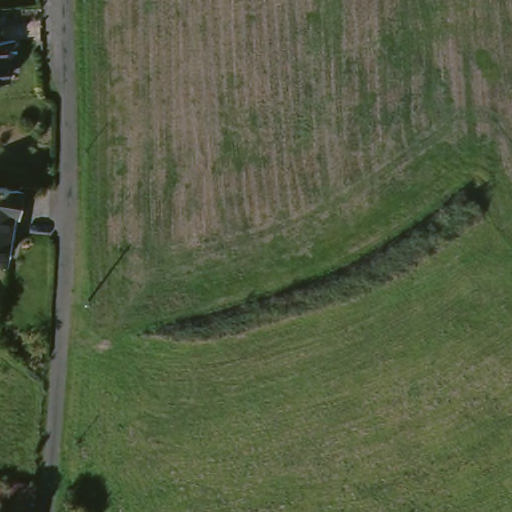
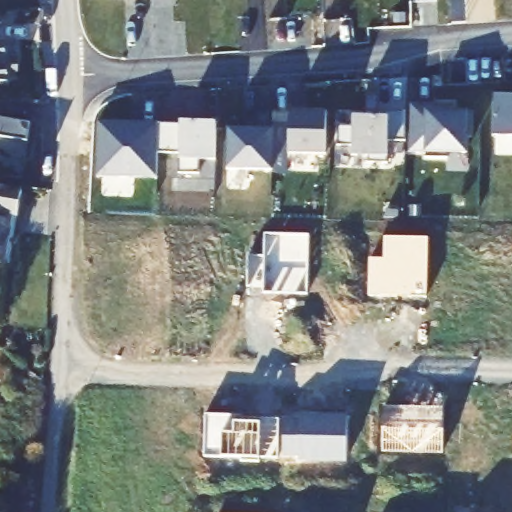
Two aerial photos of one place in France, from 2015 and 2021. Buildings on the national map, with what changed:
new [(449,23),(447,1),(447,0),(463,0),(465,23),(449,23)]
unchanged [(19,64),(9,65),(11,87),(0,88),(0,48),(17,46),(19,64)]
new [(493,94),(512,94),(512,135),(492,135),(493,94)]
new [(410,106),(443,106),(443,113),(470,113),(469,136),(465,136),(465,154),(447,154),(447,160),(425,159),(425,153),(409,152),(410,106)]
new [(288,111),(326,112),(324,155),(287,154),(288,111)]
new [(227,128),(243,129),(243,118),(256,119),(256,112),(272,113),(271,171),(226,170),(227,128)]
new [(338,126),(352,126),(352,116),(376,117),(376,112),(405,112),(404,142),(387,141),(387,163),(367,163),(367,155),(351,156),(352,146),(337,146),(338,126)]
new [(97,121),(130,122),(129,131),(139,131),(139,123),(157,123),(156,152),(155,178),(95,176),(97,121)]
new [(157,123),(179,123),(179,121),(214,122),(213,159),(197,158),(196,173),(177,173),(177,153),(156,152),(157,123)]
unchanged [(17,217),(12,216),(5,264),(0,264),(0,187),(21,190),(17,217)]
new [(370,254),(384,255),(385,239),(427,240),(426,299),(408,298),(408,291),(397,291),(397,298),(368,297),(370,254)]
new [(383,409),(443,410),(442,454),(382,453),(383,409)]
new [(205,416),(242,417),(242,420),(278,421),(277,460),(258,459),(258,463),(239,462),(240,459),(203,458),(205,416)]
new [(282,421),(346,423),(345,462),(297,461),(297,457),(282,457),(282,421)]
unchanged [(26,512),(0,512),(0,492),(27,496),(26,512)]

